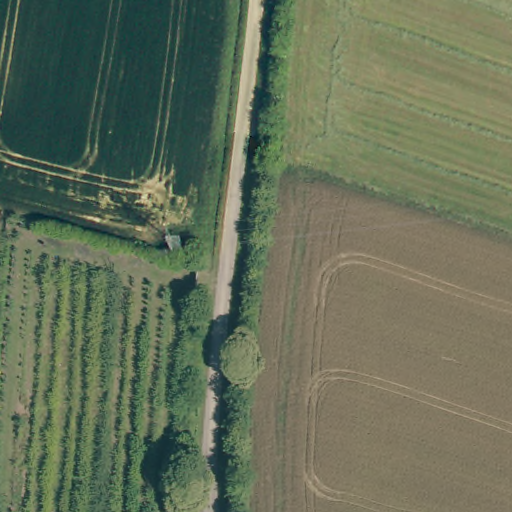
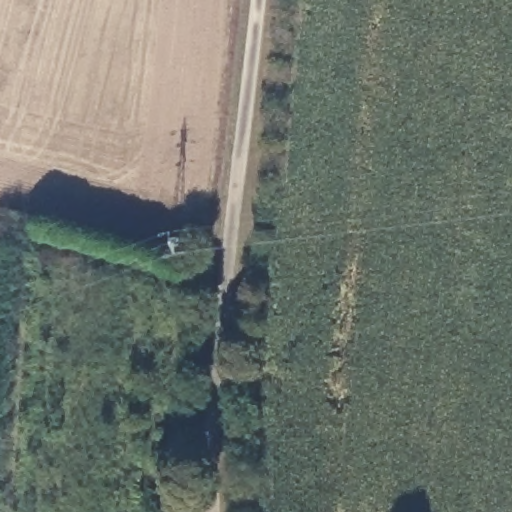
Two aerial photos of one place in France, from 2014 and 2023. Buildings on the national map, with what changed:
unchanged [(174,508),(174,482),(190,482),(191,510),(174,508)]

